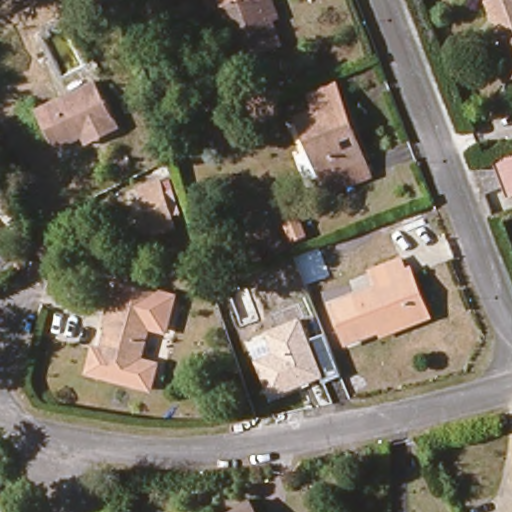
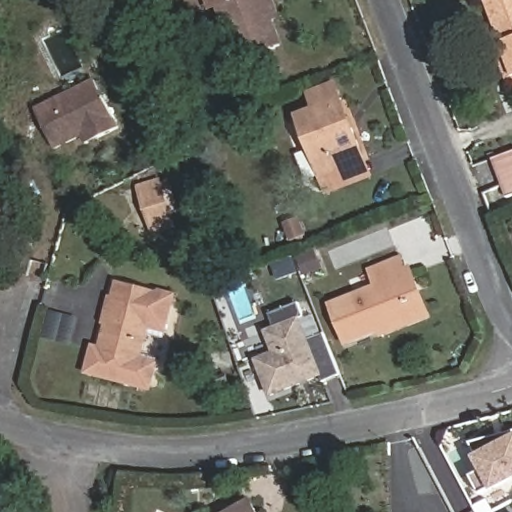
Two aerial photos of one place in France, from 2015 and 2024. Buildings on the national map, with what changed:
unchanged [(240,60),(219,4),(199,11),(195,0),(272,0),(278,17),(272,19),(281,44),(240,60)]
unchanged [(502,83),(490,50),(498,47),(482,4),(493,0),(512,0),(512,86),(510,81),(502,83)]
unchanged [(95,80),(116,125),(85,140),(82,134),(53,147),(35,108),(95,80)]
unchanged [(327,195),(321,180),(299,121),(316,115),(309,98),(335,88),(341,106),(352,136),(363,165),(368,180),(327,195)]
unchanged [(512,199),(499,204),(483,163),(511,152),(512,153),(512,199)]
unchanged [(162,175),(171,198),(152,205),(143,181),(162,175)]
unchanged [(234,254),(257,246),(262,260),(240,268),(234,254)]
unchanged [(346,340),(333,305),(379,288),(372,271),(400,261),(403,271),(419,311),(377,327),(346,340)]
unchanged [(278,293),(257,301),(247,275),(269,267),(278,293)]
unchanged [(419,311),(403,271),(413,267),(433,317),(381,337),(377,327),(419,311)]
unchanged [(164,296),(155,330),(138,325),(129,359),(146,364),(140,388),(78,371),(85,347),(92,349),(110,281),(164,296)]
unchanged [(344,375),(324,384),(321,379),(267,399),(254,362),(277,353),(269,332),(305,318),(313,339),(327,333),(344,375)]
new [(475,458),(478,457),(472,445),(512,433),(512,483),(494,493),(492,491),(482,495),(472,477),(481,472),(475,458)]
unchanged [(258,512),(233,512),(252,502),(258,512)]

